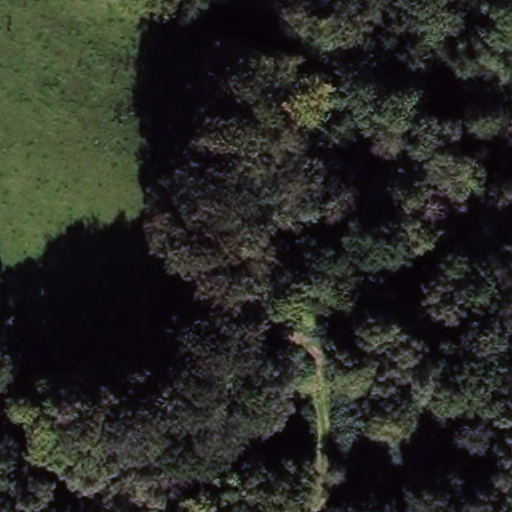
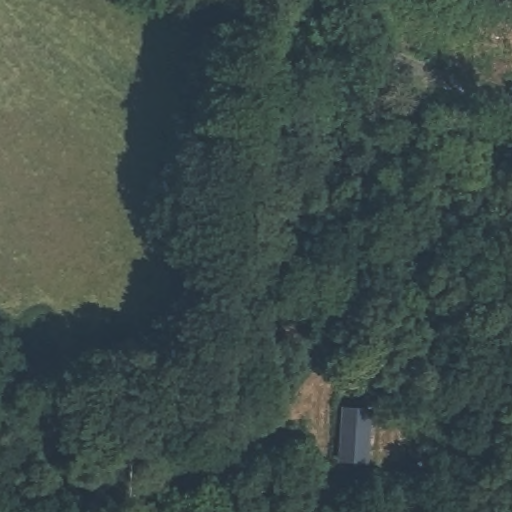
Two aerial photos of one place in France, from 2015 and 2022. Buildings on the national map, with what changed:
new [(372,409),(370,466),(339,462),(342,409),(372,409)]

